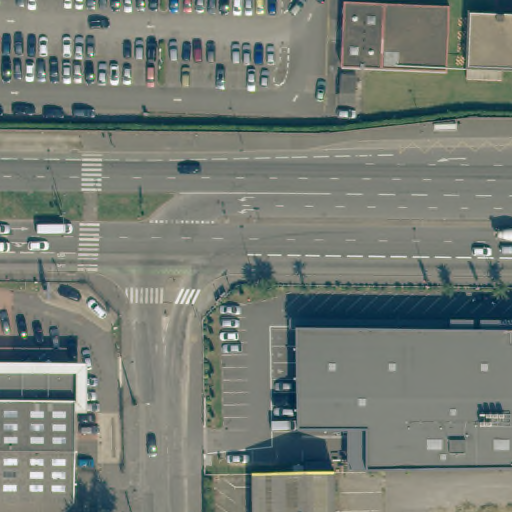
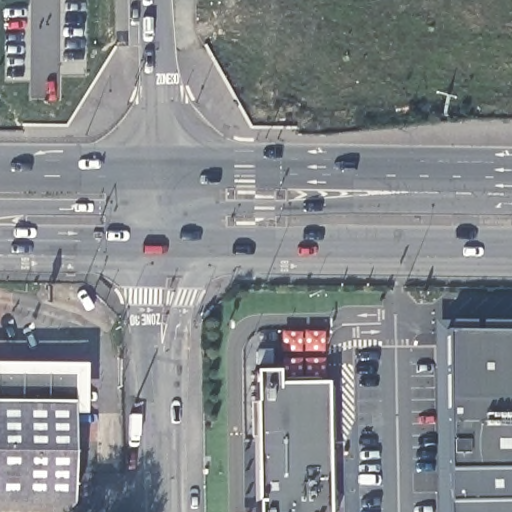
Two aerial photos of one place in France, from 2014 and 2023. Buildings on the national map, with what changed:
demolished [(345,67),(347,3),(451,7),(450,71),(345,67)]
demolished [(469,10),(512,11),(512,66),(467,64),(469,10)]
demolished [(342,82),(368,84),(368,101),(341,100),(342,82)]
demolished [(512,471),(344,470),(344,467),(345,428),(276,428),(276,325),(512,327),(512,471)]
new [(512,333),(512,512),(447,512),(445,332),(512,333)]
new [(277,372),(278,385),(325,384),(327,512),(256,512),(255,372),(277,372)]
unchanged [(70,376),(70,503),(68,503),(61,512),(0,512),(0,376),(70,376)]
demolished [(346,476),(347,512),(255,512),(254,478),(346,476)]
demolished [(512,492),(512,512),(467,512),(466,492),(512,492)]

